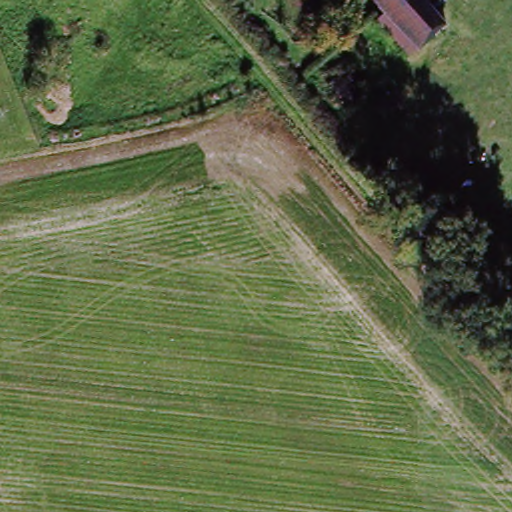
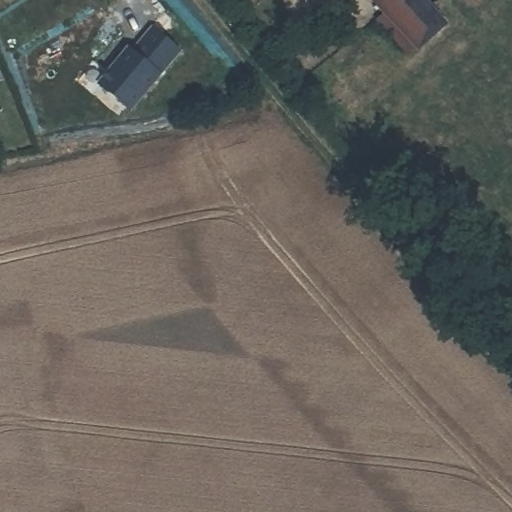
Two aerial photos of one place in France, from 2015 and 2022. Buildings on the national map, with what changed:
unchanged [(435,31),(415,50),(373,0),(410,0),(435,31)]
new [(135,115),(101,87),(132,50),(137,54),(158,29),(186,52),(135,115)]

